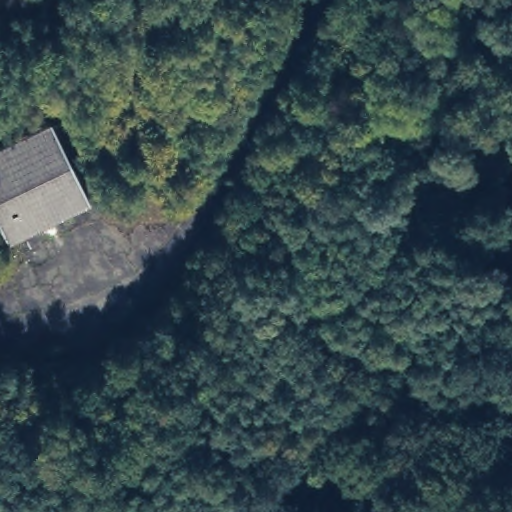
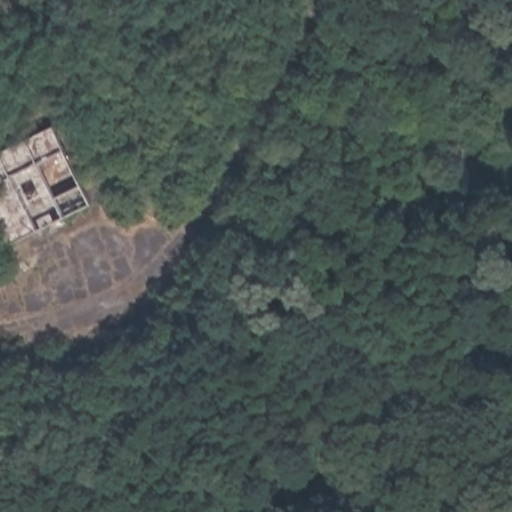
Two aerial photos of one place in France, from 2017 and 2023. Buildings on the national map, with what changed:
unchanged [(0,144),(57,112),(93,204),(6,243),(0,227),(0,144)]

